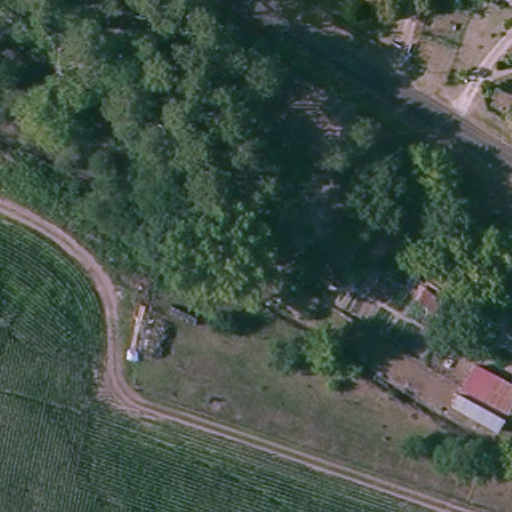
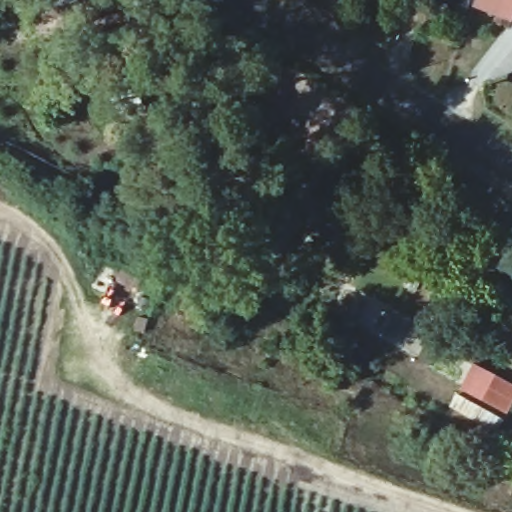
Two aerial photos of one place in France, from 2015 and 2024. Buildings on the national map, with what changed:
new [(472,0),(512,0),(512,19),(471,3),(472,0)]
demolished [(512,0),(512,6),(496,0),(512,0)]
unchanged [(512,407),(499,432),(450,404),(470,363),(512,385),(512,407)]

